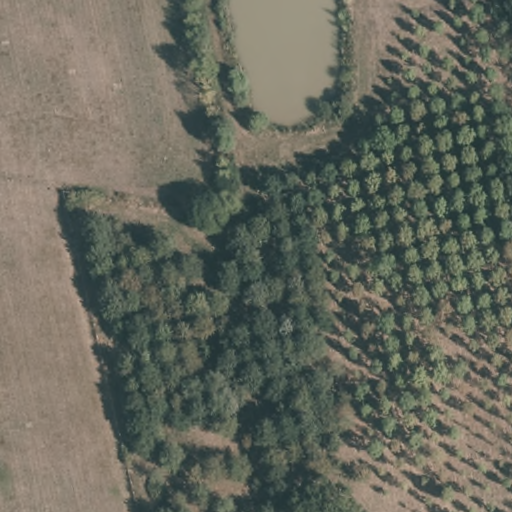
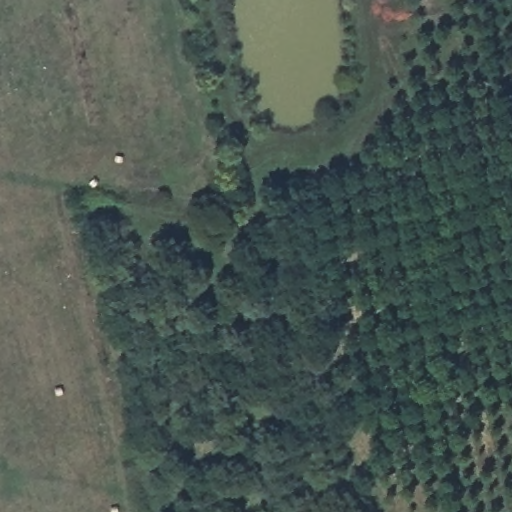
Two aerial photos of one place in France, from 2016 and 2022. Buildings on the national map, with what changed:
[]

